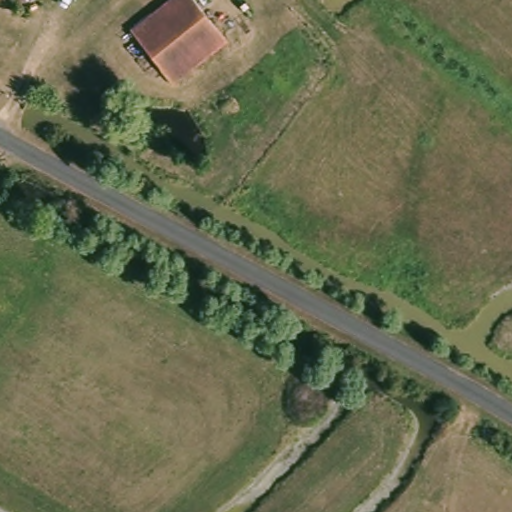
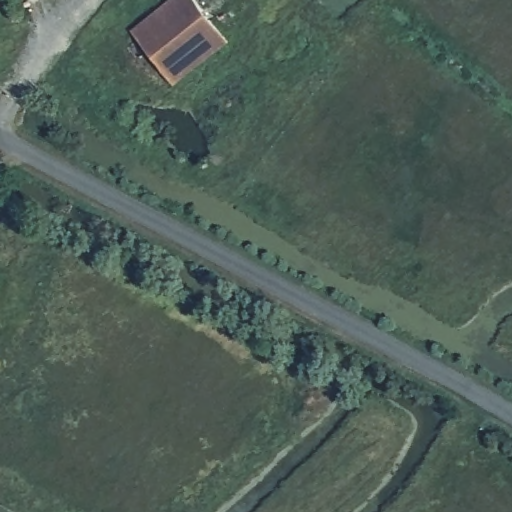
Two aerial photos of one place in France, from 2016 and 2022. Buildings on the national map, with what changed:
unchanged [(178,0),(195,0),(232,43),(179,87),(134,35),(178,0)]

